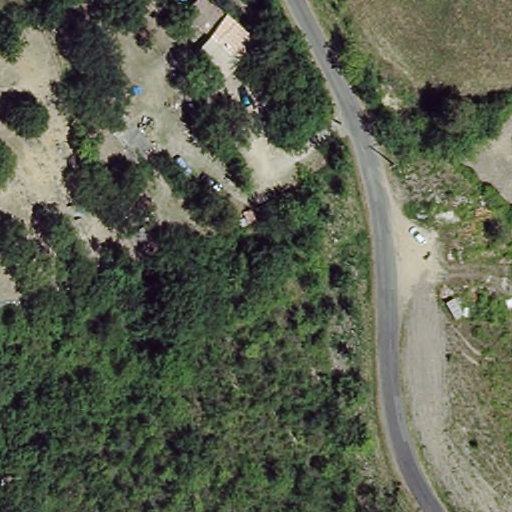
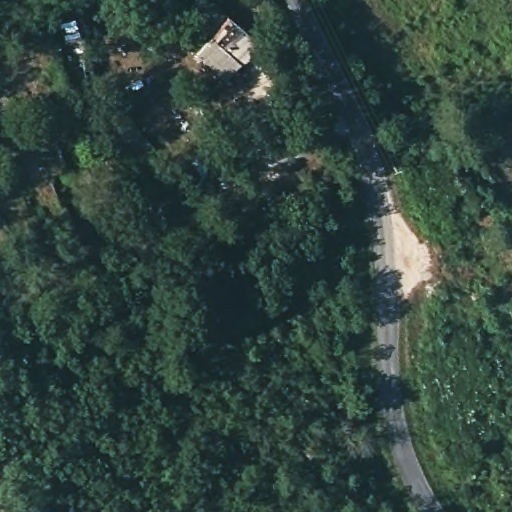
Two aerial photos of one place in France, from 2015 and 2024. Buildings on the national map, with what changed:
unchanged [(206,33),(180,10),(188,0),(210,0),(229,15),(252,39),(231,59),(216,74),(191,48),(206,33)]

